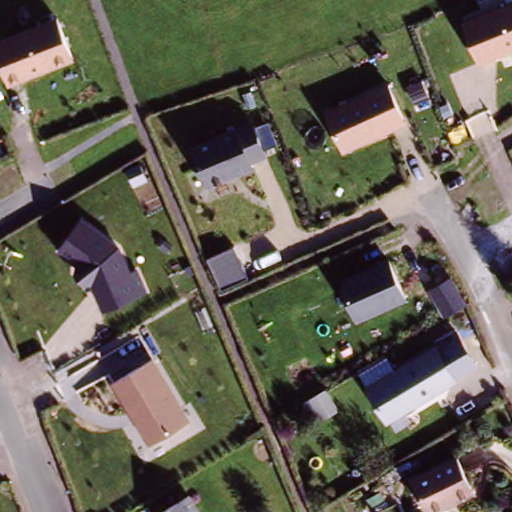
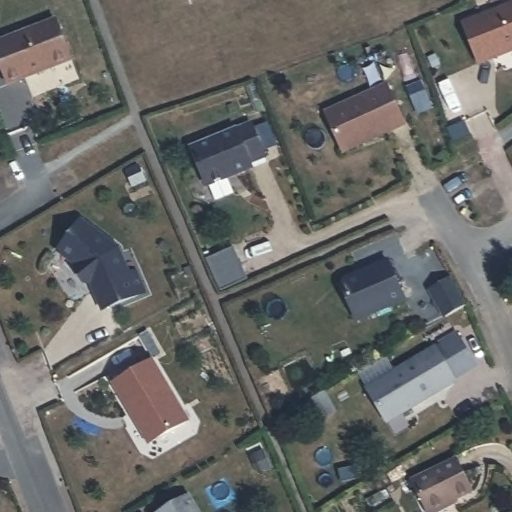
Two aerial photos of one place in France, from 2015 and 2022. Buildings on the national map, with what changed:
unchanged [(479,65),(462,21),(512,2),(512,52),(479,65)]
unchanged [(59,17),(76,61),(9,86),(0,63),(0,39),(59,17)]
unchanged [(389,82),(409,125),(344,154),(325,110),(389,82)]
unchanged [(256,170),(207,189),(190,146),(239,127),(255,121),(269,157),(254,164),(256,170)]
unchanged [(120,246),(131,273),(140,270),(150,293),(141,297),(104,312),(92,285),(84,287),(74,266),(58,254),(83,218),(120,246)]
unchanged [(339,279),(392,257),(409,300),(357,322),(339,279)]
unchanged [(385,419),(366,383),(436,346),(436,345),(458,333),(476,366),(453,378),(455,381),(385,419)]
unchanged [(155,359),(193,422),(150,446),(113,383),(155,359)]
unchanged [(328,389),(340,409),(324,417),(313,398),(328,389)]
unchanged [(458,455),(475,488),(433,510),(416,478),(458,455)]
unchanged [(191,492),(202,512),(157,512),(191,492)]

